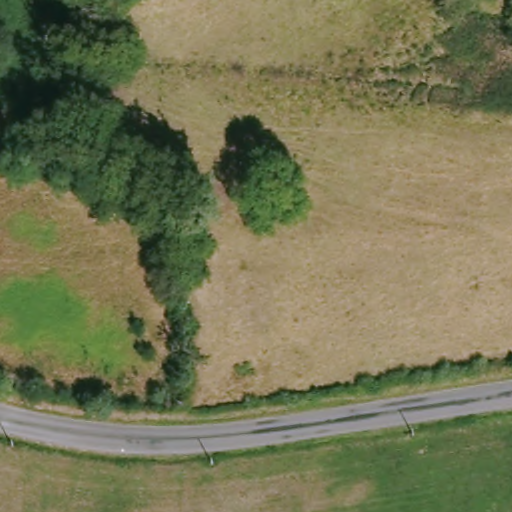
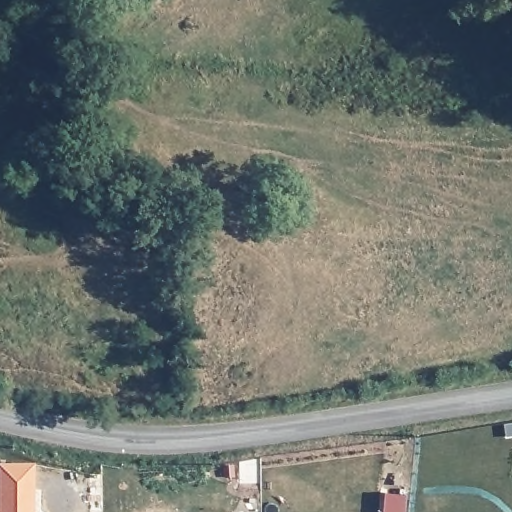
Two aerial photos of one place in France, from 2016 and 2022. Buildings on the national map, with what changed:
unchanged [(176,292),(190,292),(190,303),(176,303),(176,292)]
new [(0,462),(35,462),(36,511),(37,512),(0,512),(0,462)]

